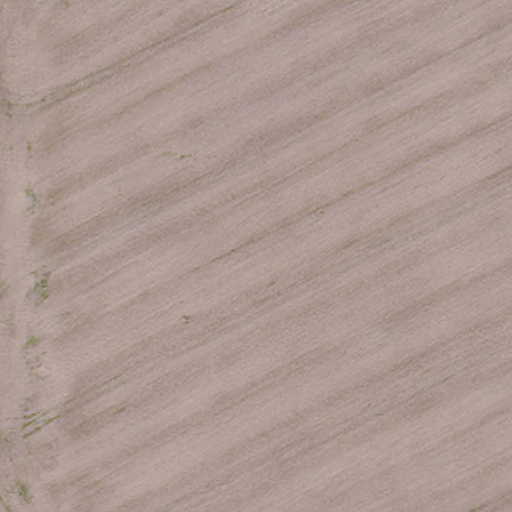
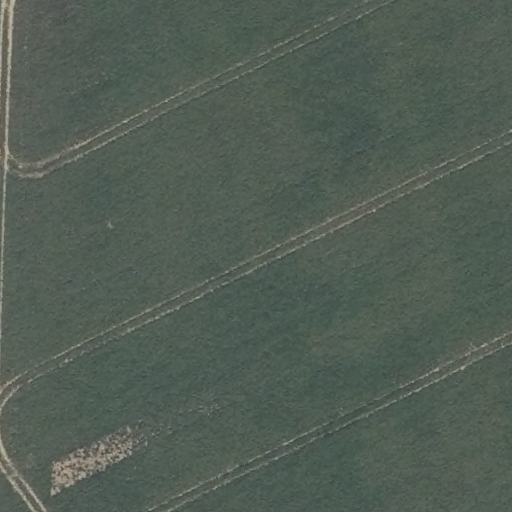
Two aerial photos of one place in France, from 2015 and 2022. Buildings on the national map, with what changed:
[]

